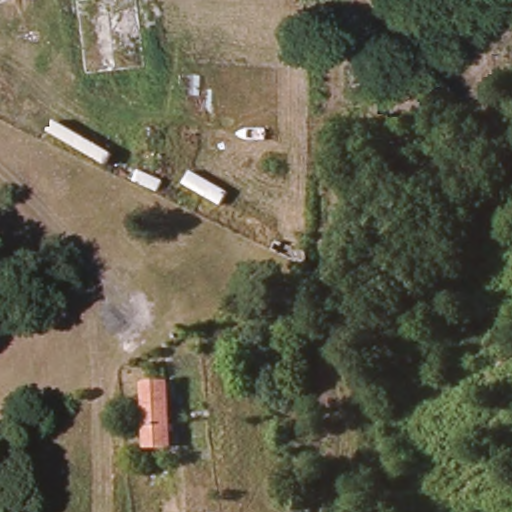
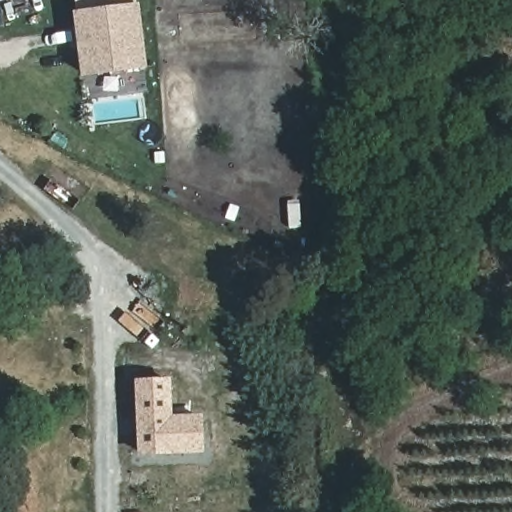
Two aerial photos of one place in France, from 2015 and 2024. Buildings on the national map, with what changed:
new [(82,78),(74,12),(141,2),(149,69),(82,78)]
new [(176,379),(178,416),(207,415),(209,453),(143,457),(139,382),(176,379)]
demolished [(146,406),(144,388),(167,385),(168,394),(174,442),(151,446),(146,406)]

